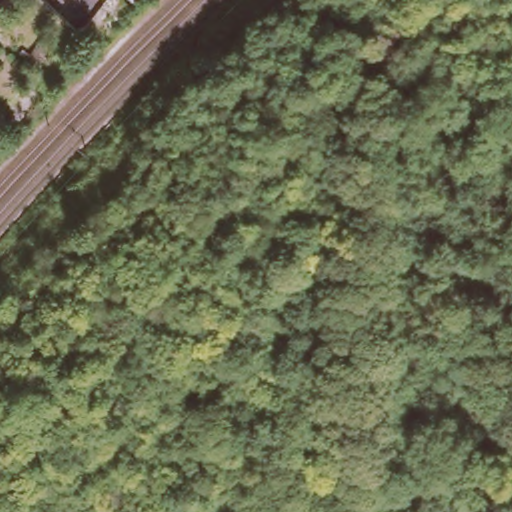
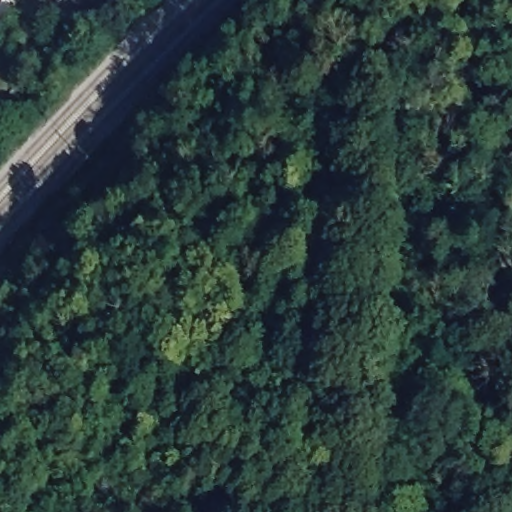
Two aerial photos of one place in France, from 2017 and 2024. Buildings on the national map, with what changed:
unchanged [(126,0),(144,0),(136,9),(126,0)]

